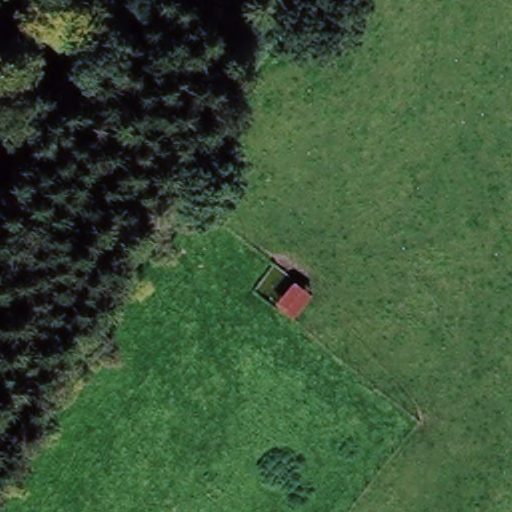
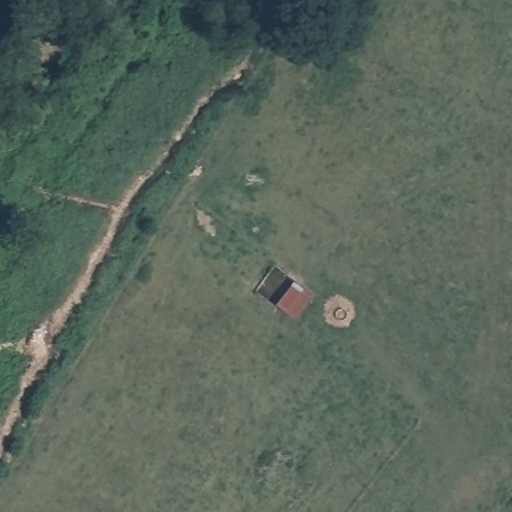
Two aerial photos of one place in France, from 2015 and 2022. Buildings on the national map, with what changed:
unchanged [(293,318),(278,304),(296,284),(312,299),(293,318)]

